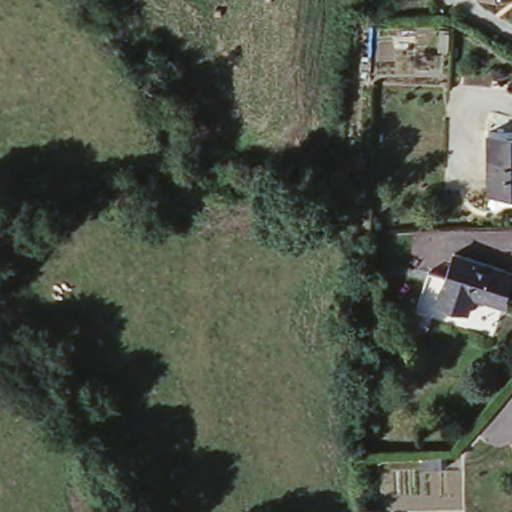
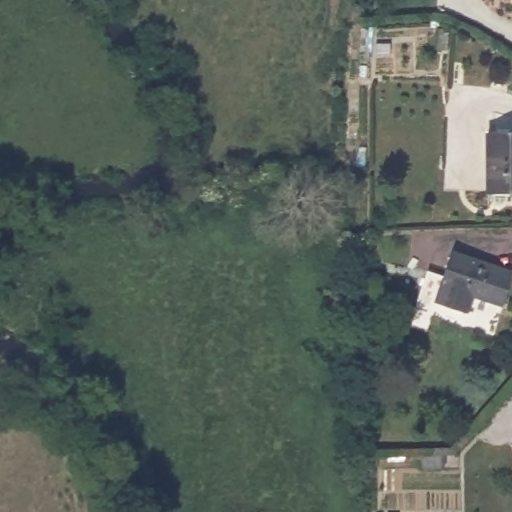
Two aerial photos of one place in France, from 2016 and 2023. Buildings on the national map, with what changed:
unchanged [(512,128),(512,189),(487,189),(487,128),(512,128)]
unchanged [(456,247),(512,273),(512,281),(502,303),(472,290),(464,307),(434,294),(456,247)]

